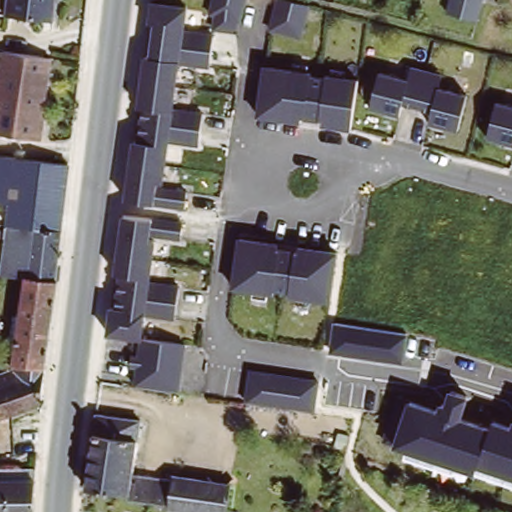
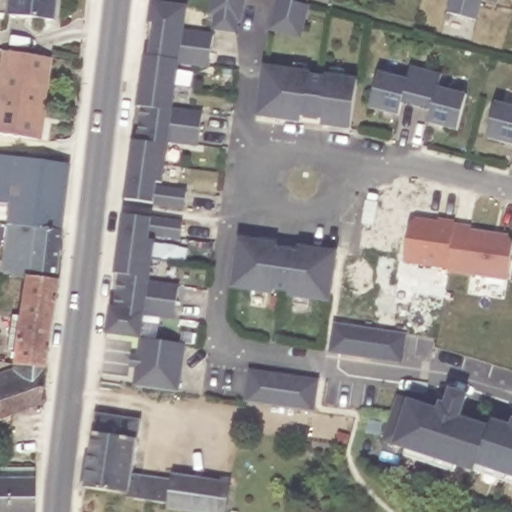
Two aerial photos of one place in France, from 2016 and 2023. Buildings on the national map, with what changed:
unchanged [(49,20),(2,14),(4,0),(52,0),(49,20)]
unchanged [(236,17),(233,17),(232,28),(210,25),(212,11),(205,10),(208,0),(240,0),(236,17)]
unchanged [(271,21),(276,0),(301,0),(304,1),(309,2),(299,35),(270,27),(271,21)]
unchanged [(487,25),(452,14),(455,0),(492,0),(487,25)]
unchanged [(182,5),(179,29),(209,34),(207,49),(205,65),(175,60),(169,107),(199,111),(195,143),(164,139),(159,181),(154,180),(153,186),(184,190),(181,206),(151,202),(123,198),(131,139),(135,139),(139,105),(135,105),(142,54),(146,55),(151,21),(146,20),(149,1),(182,5)]
unchanged [(0,103),(6,48),(54,54),(45,137),(0,133),(0,103)]
unchanged [(439,85),(468,91),(459,127),(429,120),(432,107),(403,100),(400,112),(371,105),(380,69),(408,76),(412,64),(443,71),(439,85)]
unchanged [(303,119),(301,124),(259,117),(266,69),(311,75),(311,79),(326,80),(326,77),(359,82),(351,130),(323,126),(323,122),(320,121),(305,120),(303,119)]
unchanged [(512,141),(488,135),(497,99),(512,103),(512,141)]
unchanged [(73,162),(68,211),(0,201),(0,153),(73,162)]
unchanged [(9,202),(68,211),(65,231),(9,225),(5,224),(9,202)]
unchanged [(149,217),(179,220),(178,237),(147,233),(146,238),(151,239),(149,257),(146,280),(176,285),(171,317),(141,312),(138,336),(105,332),(108,306),(113,306),(117,273),(113,272),(120,213),(149,217)]
new [(417,217),(439,220),(439,219),(455,220),(454,224),(472,226),(471,230),(508,235),(512,241),(512,248),(507,280),(404,265),(409,224),(417,217)]
unchanged [(65,231),(60,278),(28,276),(3,272),(9,225),(65,231)]
unchanged [(274,241),(274,246),(276,247),(291,249),(294,249),(295,245),(333,250),(326,298),(285,293),(286,288),(271,286),(271,291),(229,285),(236,236),(274,241)]
unchanged [(60,278),(50,368),(21,365),(18,364),(28,276),(60,278)]
unchanged [(408,333),(404,364),(329,353),(333,322),(408,333)]
unchanged [(181,342),(175,391),(144,386),(132,385),(138,336),(181,342)]
unchanged [(45,411),(0,426),(0,374),(21,365),(50,368),(45,411)]
unchanged [(320,373),(316,405),(248,395),(252,365),(320,373)]
unchanged [(456,476),(402,457),(406,449),(393,443),(408,403),(441,412),(447,393),(467,400),(459,422),(489,431),(491,420),(512,428),(512,427),(512,486),(458,467),(456,476)]
unchanged [(130,476),(171,482),(171,477),(227,484),(223,512),(166,512),(167,507),(143,505),(126,502),(126,498),(81,492),(90,419),(137,425),(130,476)]
unchanged [(39,512),(0,512),(0,469),(38,471),(39,512)]

